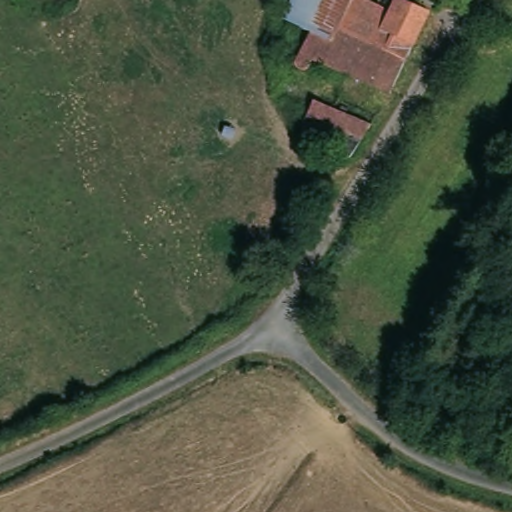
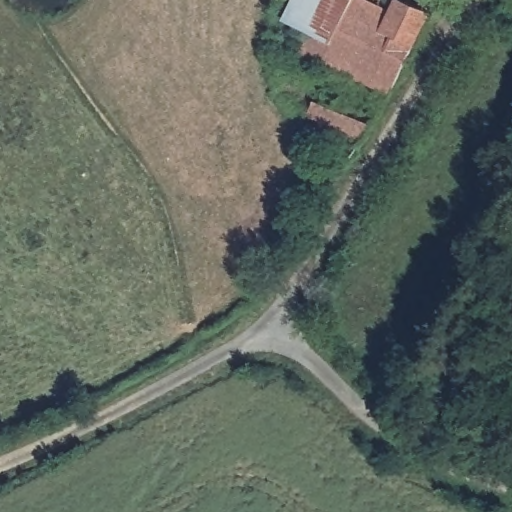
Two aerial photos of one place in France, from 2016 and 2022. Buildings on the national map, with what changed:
unchanged [(295,0),(366,0),(392,13),(399,0),(407,0),(431,12),(393,93),(317,58),(309,66),(303,65),(300,61),(300,54),(307,32),(299,28),(286,20),(295,0)]
unchanged [(375,124),(365,139),(354,159),(294,130),(312,95),(375,124)]

